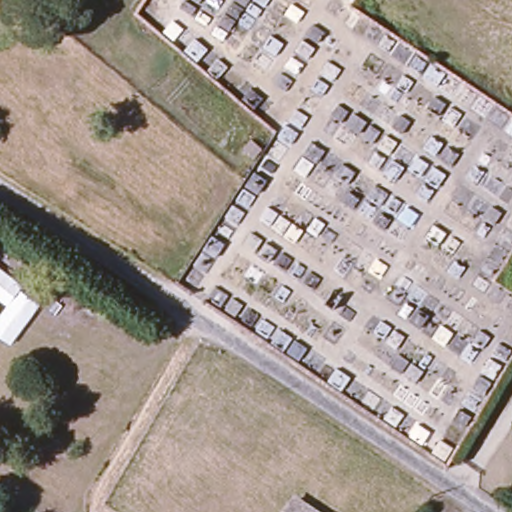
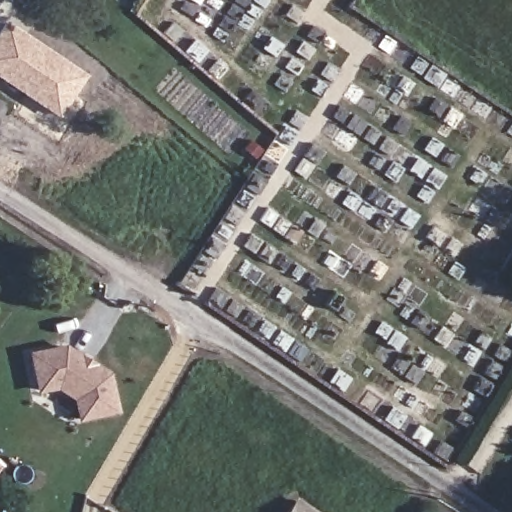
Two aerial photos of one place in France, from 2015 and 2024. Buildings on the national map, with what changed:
new [(0,78),(0,30),(6,21),(85,74),(59,118),(0,78)]
new [(77,421),(72,398),(57,390),(36,393),(28,352),(66,345),(109,372),(119,412),(77,421)]
unchanged [(308,512),(291,512),(296,504),(308,512)]

